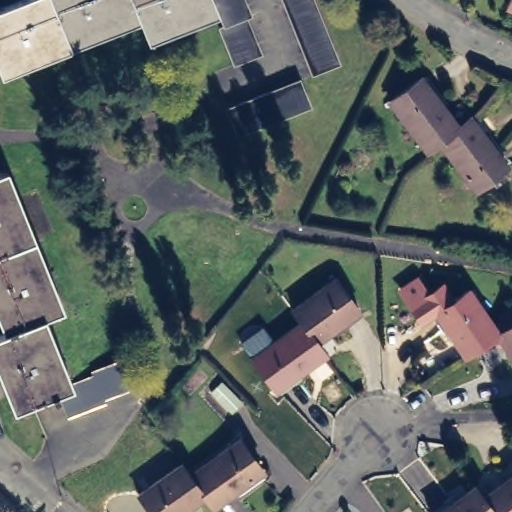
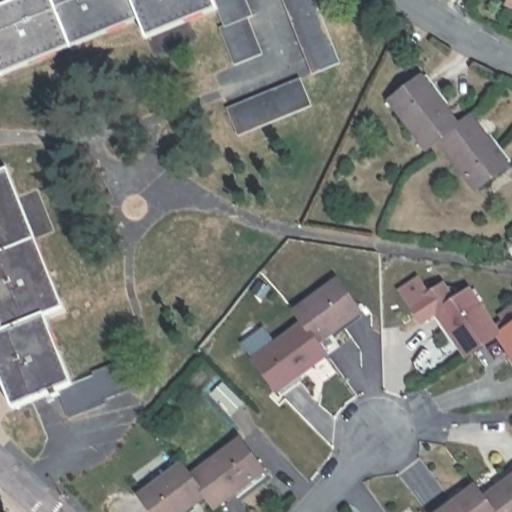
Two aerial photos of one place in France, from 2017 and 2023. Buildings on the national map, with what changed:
unchanged [(26,0),(215,0),(219,9),(147,36),(140,20),(2,75),(0,70),(0,10),(26,0)]
unchanged [(252,17),(249,19),(264,58),(237,68),(221,29),(226,27),(219,9),(215,0),(246,0),(252,17)]
unchanged [(288,0),(317,0),(340,60),(313,69),(288,0)]
unchanged [(512,5),(508,3),(509,0),(512,0),(512,5)]
unchanged [(392,101),(423,78),(459,126),(442,140),(427,150),(392,101)]
unchanged [(228,110),(300,83),(310,109),(239,138),(228,110)]
unchanged [(459,126),(474,117),(510,168),(477,191),(442,140),(459,126)]
unchanged [(64,310),(47,317),(75,386),(66,390),(67,398),(60,401),(57,394),(23,408),(0,351),(0,337),(11,333),(0,305),(0,176),(7,173),(64,310)]
unchanged [(334,275),(359,309),(316,339),(300,319),(292,306),(334,275)]
unchanged [(444,315),(477,291),(507,335),(505,336),(473,358),(444,315)]
unchanged [(316,339),(325,351),(275,386),(252,353),(300,319),(316,339)]
unchanged [(507,335),(512,331),(512,346),(505,336),(507,335)]
unchanged [(75,386),(100,375),(99,372),(125,361),(135,387),(111,397),(113,402),(75,417),(67,398),(66,390),(75,386)]
unchanged [(194,470),(243,439),(269,472),(218,506),(211,494),(194,470)]
unchanged [(211,494),(185,512),(155,512),(141,492),(187,461),(194,470),(211,494)]
unchanged [(512,478),(512,512),(494,512),(484,499),(512,478)]
unchanged [(494,512),(439,512),(475,486),(484,499),(494,512)]

